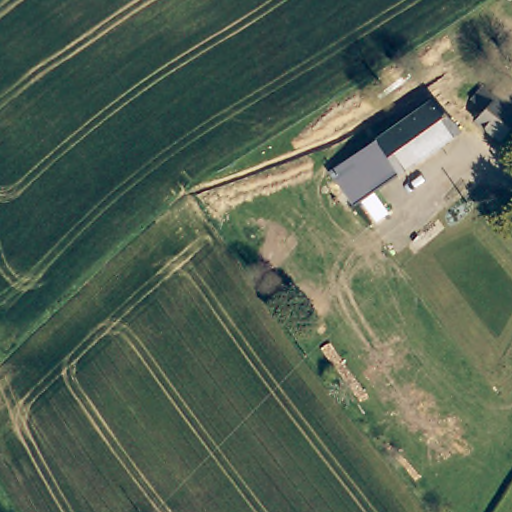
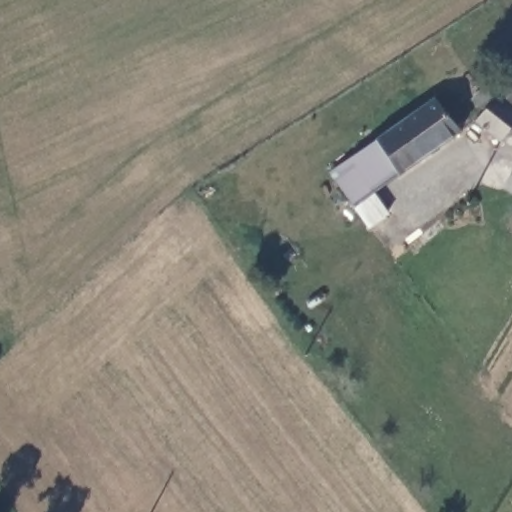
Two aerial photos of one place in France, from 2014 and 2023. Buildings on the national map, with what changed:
unchanged [(486,103),(475,94),(485,82),(512,103),(512,127),(503,138),(475,117),(486,103)]
unchanged [(356,206),(331,173),(432,101),(461,132),(356,206)]

